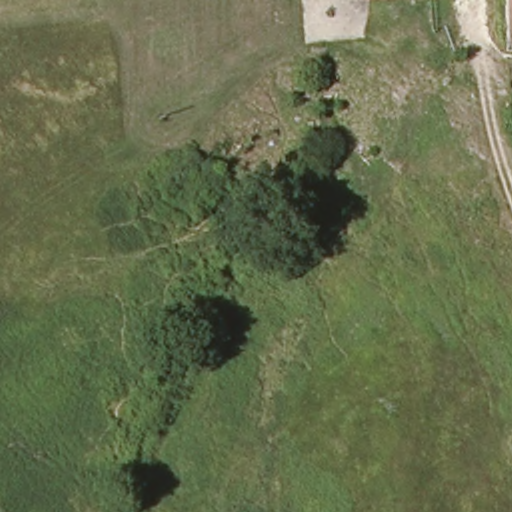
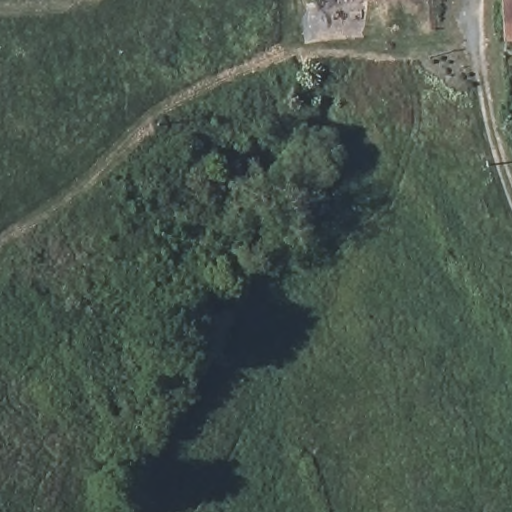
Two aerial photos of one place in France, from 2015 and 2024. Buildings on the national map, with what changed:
unchanged [(508,36),(506,0),(512,0),(512,36),(508,36)]

